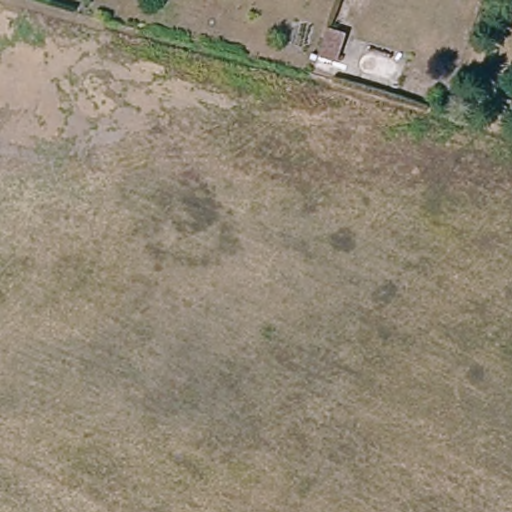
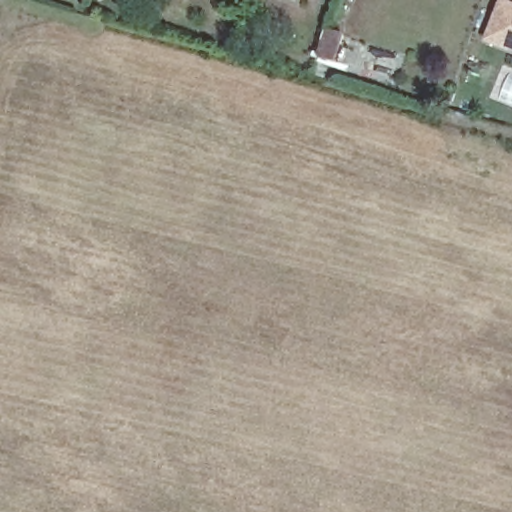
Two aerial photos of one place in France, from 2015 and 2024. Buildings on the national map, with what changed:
new [(484,41),(501,0),(511,0),(512,1),(512,52),(484,41)]
unchanged [(334,40),(325,66),(309,60),(318,35),(334,40)]

